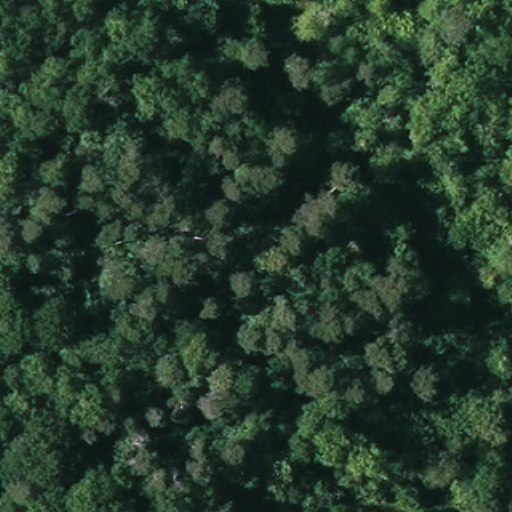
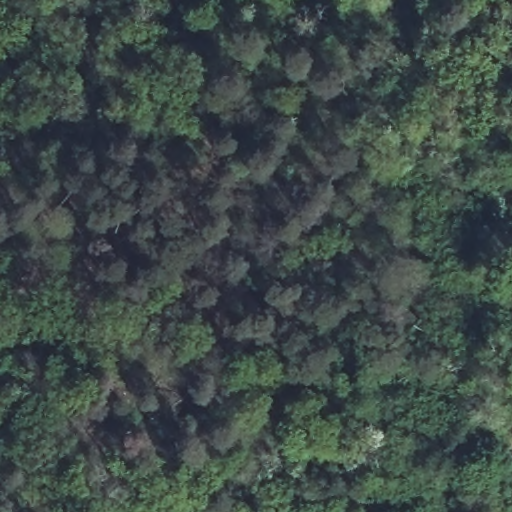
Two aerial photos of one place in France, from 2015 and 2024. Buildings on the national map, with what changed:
[]

